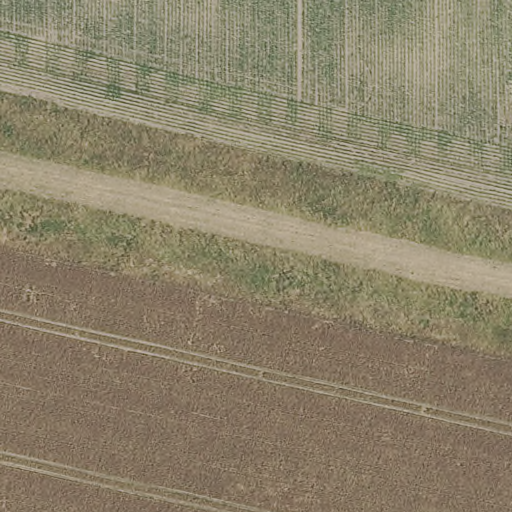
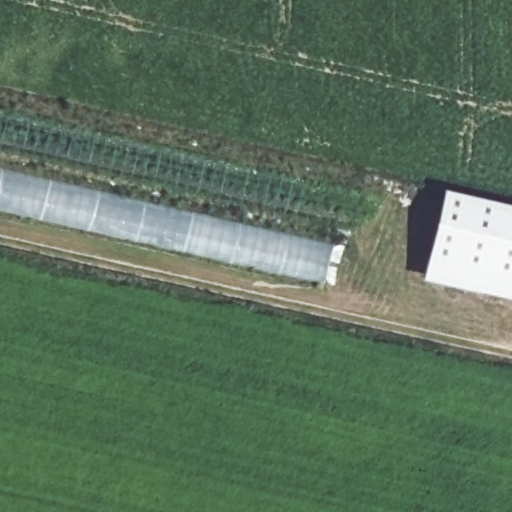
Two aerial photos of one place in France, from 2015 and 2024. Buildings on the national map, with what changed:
new [(337,232),(0,154),(0,109),(347,190),(337,232)]
new [(325,287),(0,212),(0,167),(336,246),(325,287)]
new [(422,281),(444,190),(512,206),(512,302),(422,281)]

